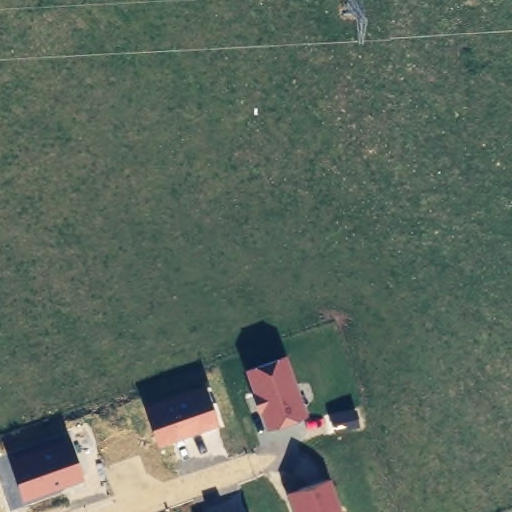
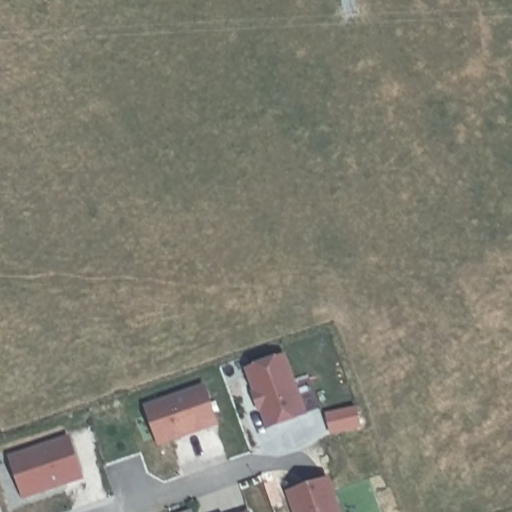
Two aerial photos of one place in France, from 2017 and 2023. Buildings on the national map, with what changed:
unchanged [(355,21),(338,22),(337,0),(354,0),(355,21)]
unchanged [(266,429),(244,368),(286,353),(307,413),(266,429)]
unchanged [(207,429),(156,446),(141,404),(195,385),(207,381),(222,423),(207,429)]
unchanged [(21,499),(5,452),(68,430),(85,478),(21,499)]
unchanged [(337,512),(298,512),(291,493),(292,493),(326,480),(337,512)]

